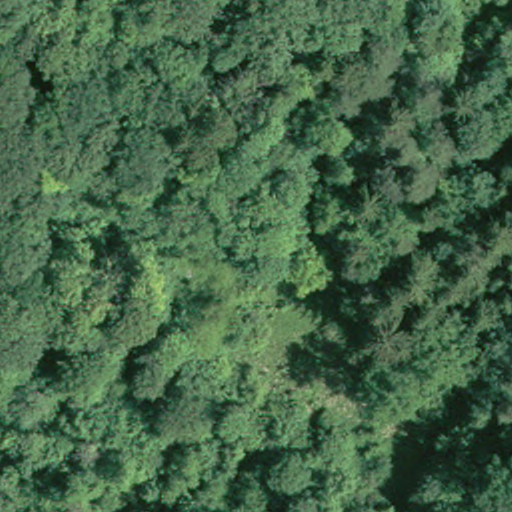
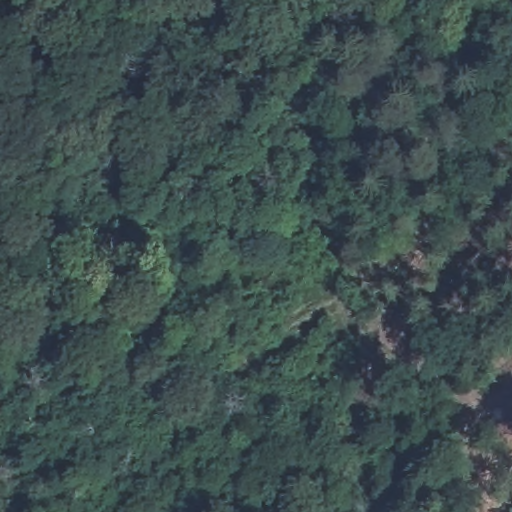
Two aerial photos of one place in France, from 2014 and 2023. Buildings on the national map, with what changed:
unchanged [(46,215),(84,170),(98,181),(62,226),(46,215)]

